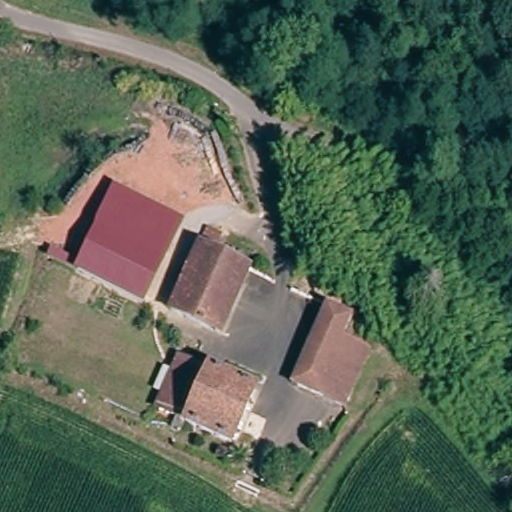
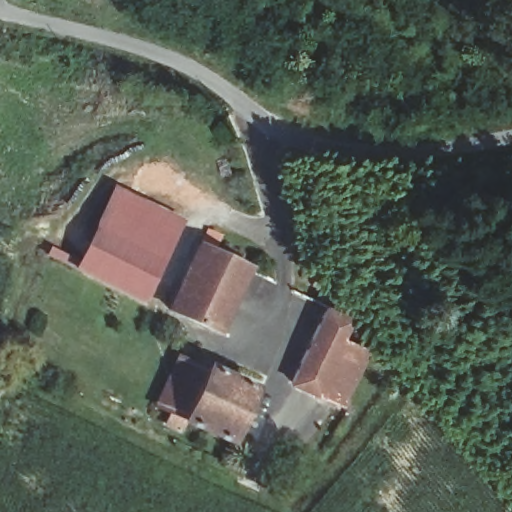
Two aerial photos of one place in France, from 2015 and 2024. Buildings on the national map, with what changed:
unchanged [(139,204),(176,219),(162,245),(127,229),(139,204)]
unchanged [(162,245),(141,297),(72,267),(95,215),(127,229),(162,245)]
unchanged [(244,266),(216,326),(169,305),(195,245),(244,266)]
unchanged [(348,311),(340,332),(363,343),(340,399),(291,378),(323,301),(348,311)]
unchanged [(211,370),(255,390),(232,440),(186,420),(182,426),(176,423),(179,415),(174,412),(159,406),(179,359),(194,365),(209,372),(211,370)]

